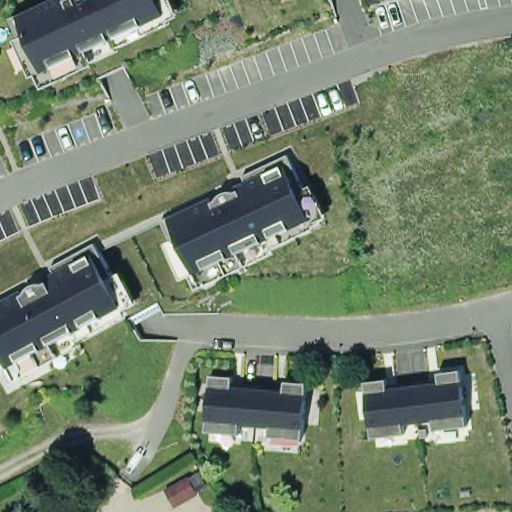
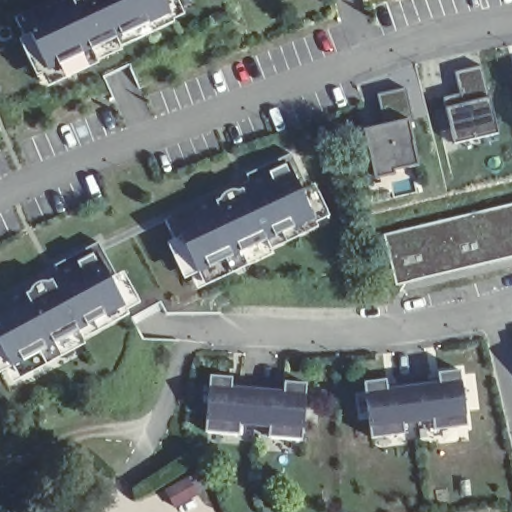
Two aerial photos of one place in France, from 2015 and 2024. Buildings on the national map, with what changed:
unchanged [(172,0),(183,23),(125,51),(121,42),(97,53),(103,68),(52,88),(19,16),(52,0),(172,0)]
new [(454,144),(443,98),(459,94),(454,72),(481,66),(499,134),(454,144)]
new [(394,171),(395,175),(374,179),(363,130),(384,125),(376,96),(406,89),(413,119),(408,120),(419,166),(394,171)]
unchanged [(296,159),(312,192),(318,187),(331,217),(318,223),(319,230),(273,252),(268,239),(243,251),(250,267),(203,285),(195,272),(186,277),(172,244),(178,239),(171,217),(296,159)]
new [(512,205),(512,259),(397,286),(385,235),(512,205)]
unchanged [(119,278),(128,275),(142,307),(81,341),(74,332),(55,344),(59,358),(18,380),(9,367),(0,370),(0,305),(101,247),(119,278)]
unchanged [(387,380),(389,390),(439,383),(437,372),(466,370),(472,428),(433,433),(432,424),(407,427),(407,438),(369,440),(364,383),(387,380)]
unchanged [(235,378),(236,387),(284,390),(286,379),(311,384),(306,440),(263,438),(263,427),(241,426),(239,437),(206,433),(211,374),(235,378)]
unchanged [(188,477),(198,494),(175,507),(166,490),(188,477)]

